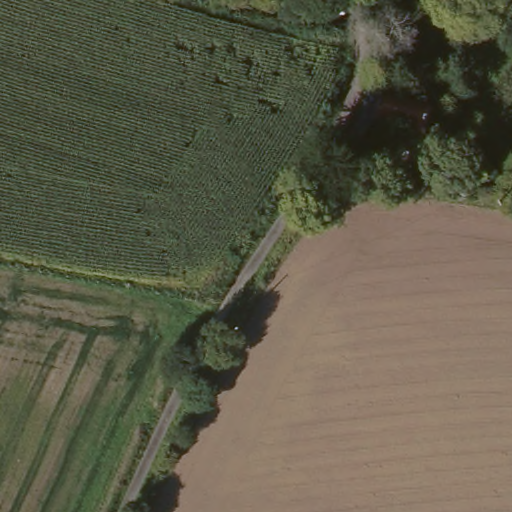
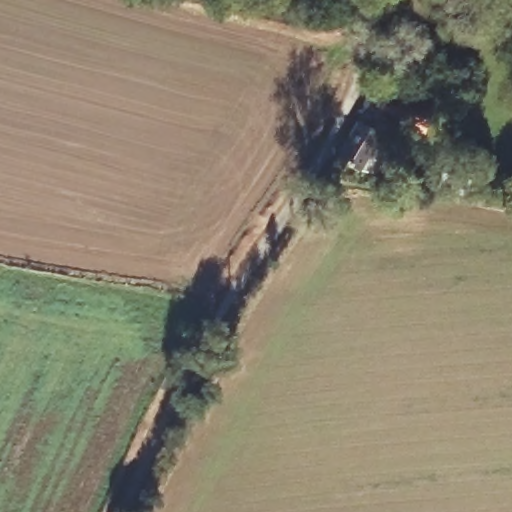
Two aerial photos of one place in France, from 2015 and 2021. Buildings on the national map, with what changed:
unchanged [(425,136),(377,122),(381,93),(432,107),(425,136)]

